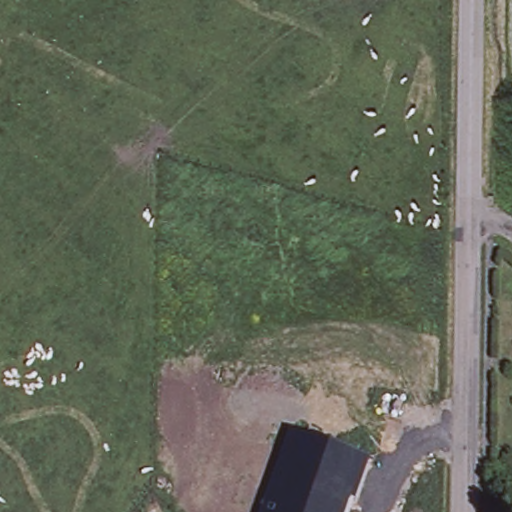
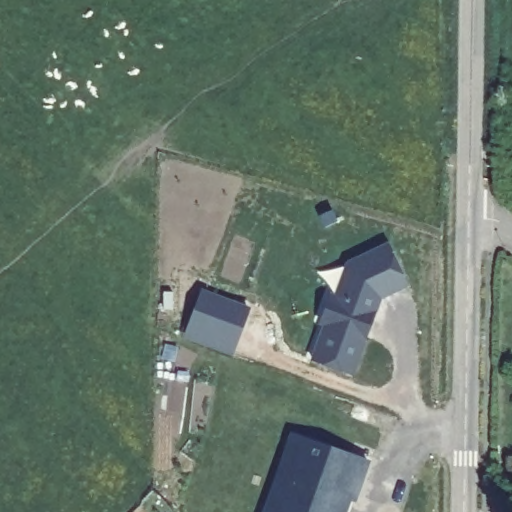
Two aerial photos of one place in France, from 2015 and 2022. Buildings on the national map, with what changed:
new [(310,360),(323,325),(317,323),(329,290),(335,292),(345,262),(388,242),(409,286),(381,298),(353,375),(310,360)]
unchanged [(369,462),(356,503),(351,502),(347,512),(263,512),(290,435),(369,462)]

